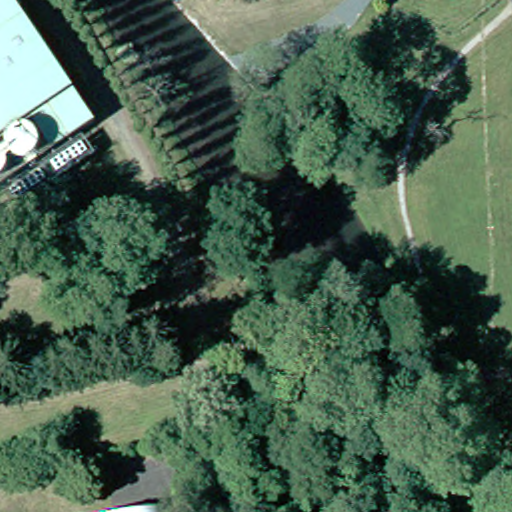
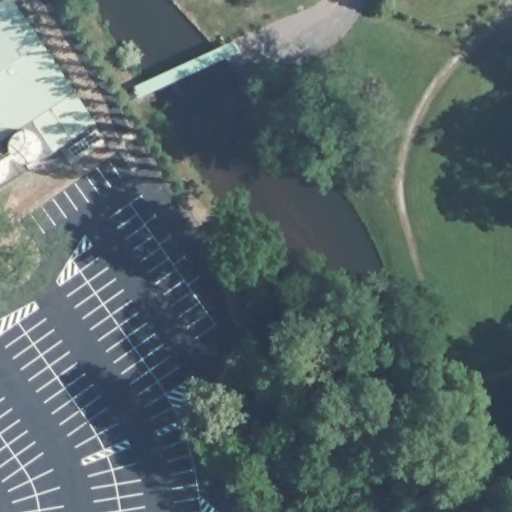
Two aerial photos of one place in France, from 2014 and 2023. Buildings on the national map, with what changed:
unchanged [(0,177),(0,0),(14,0),(92,114),(0,177)]
unchanged [(171,512),(137,512),(170,506),(171,512)]

